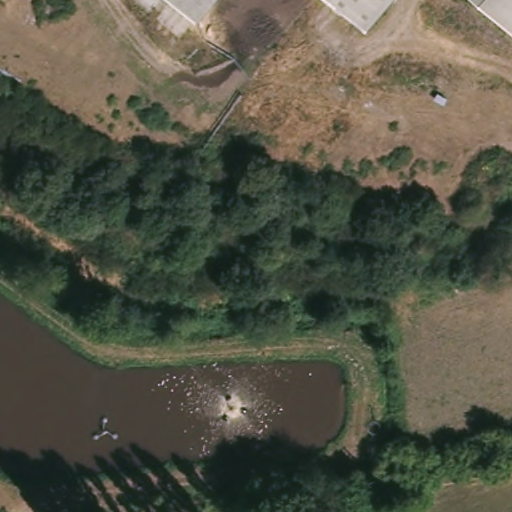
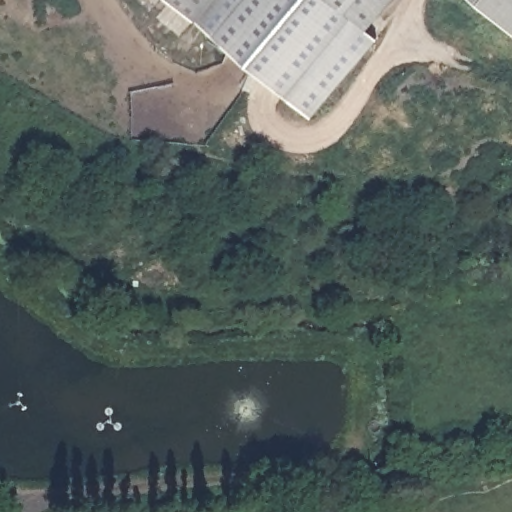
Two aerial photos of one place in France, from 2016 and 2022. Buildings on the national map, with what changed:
unchanged [(197,18),(173,0),(213,0),(197,18)]
new [(213,0),(335,0),(364,26),(377,37),(312,116),(197,18),(213,0)]
unchanged [(364,26),(335,0),(387,0),(364,26)]
unchanged [(506,30),(472,0),(512,0),(512,24),(506,30)]

